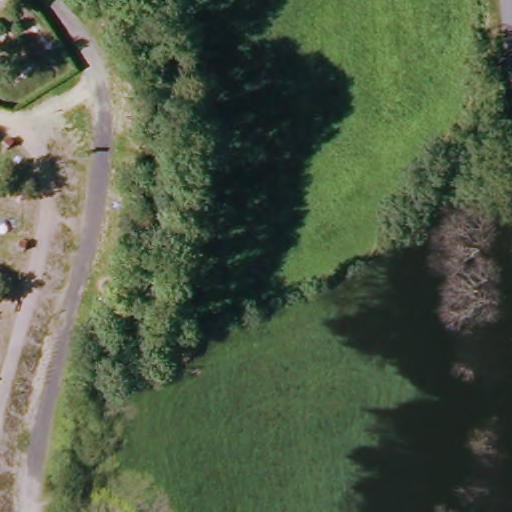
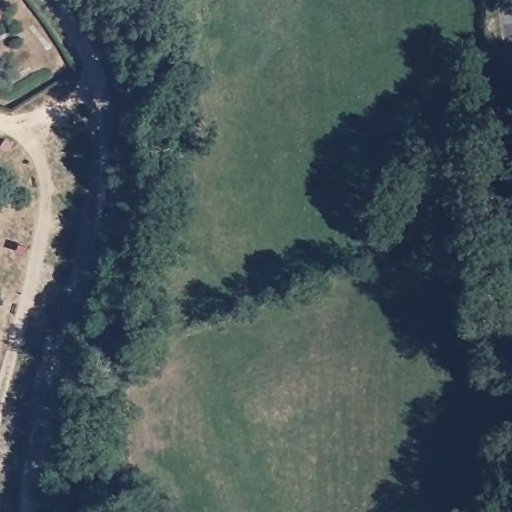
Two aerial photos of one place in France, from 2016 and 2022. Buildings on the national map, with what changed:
[]

